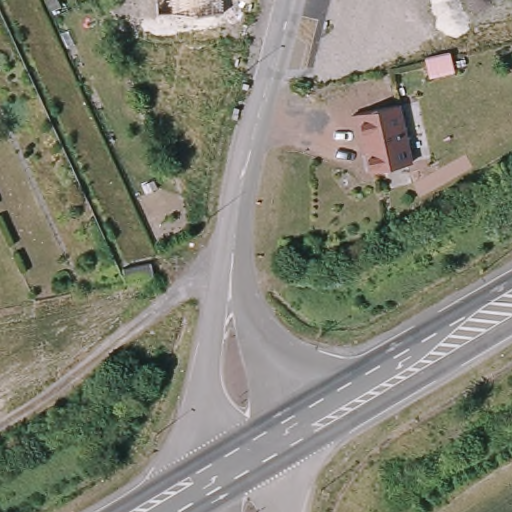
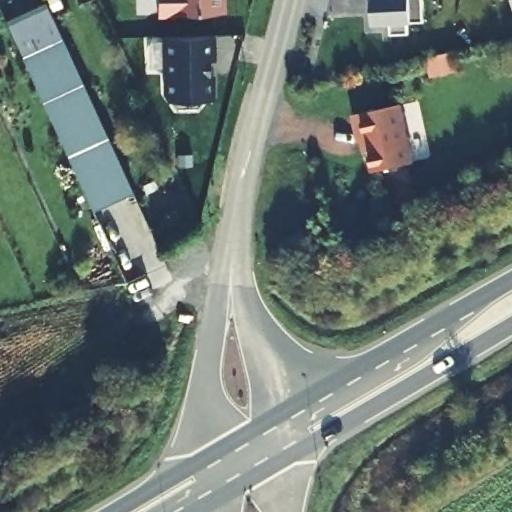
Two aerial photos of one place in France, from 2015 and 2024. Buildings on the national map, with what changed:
unchanged [(158,12),(158,0),(223,0),(224,12),(158,12)]
new [(411,24),(407,24),(408,34),(390,35),(389,24),(372,26),(372,0),(423,0),(425,22),(411,24)]
new [(5,20),(45,1),(62,37),(22,55),(5,20)]
new [(212,35),(212,59),(207,59),(207,74),(210,74),(210,99),(202,99),(195,108),(174,109),(162,93),(160,36),(212,35)]
new [(132,191),(94,209),(22,55),(62,37),(132,191)]
unchanged [(412,162),(370,172),(363,140),(357,141),(350,114),(398,104),(412,162)]
demolished [(147,264),(152,277),(124,282),(122,269),(147,264)]

